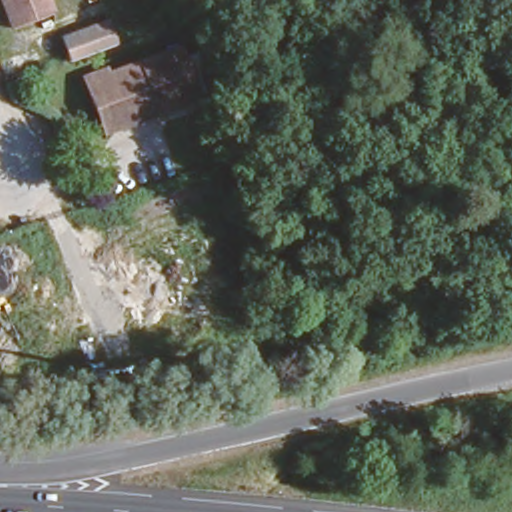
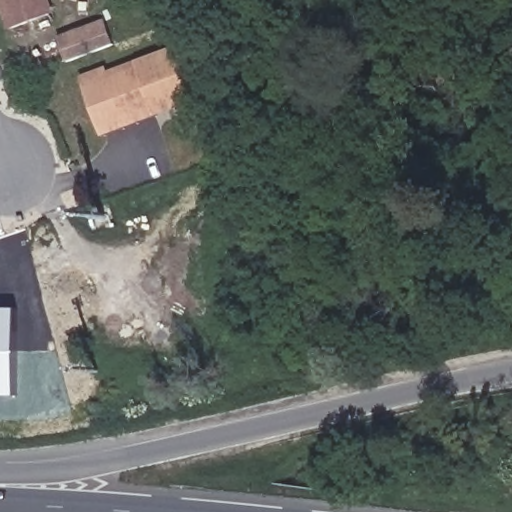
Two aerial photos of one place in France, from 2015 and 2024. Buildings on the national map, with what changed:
unchanged [(49,9),(9,23),(1,0),(46,0),(49,9)]
unchanged [(58,62),(49,36),(113,15),(122,39),(58,62)]
unchanged [(151,98),(145,86),(119,96),(124,108),(99,118),(82,67),(105,59),(107,65),(175,40),(192,84),(151,98)]
unchanged [(196,98),(103,131),(99,118),(124,108),(119,96),(145,86),(151,98),(192,84),(196,98)]
new [(17,396),(0,396),(0,309),(17,308),(17,396)]

